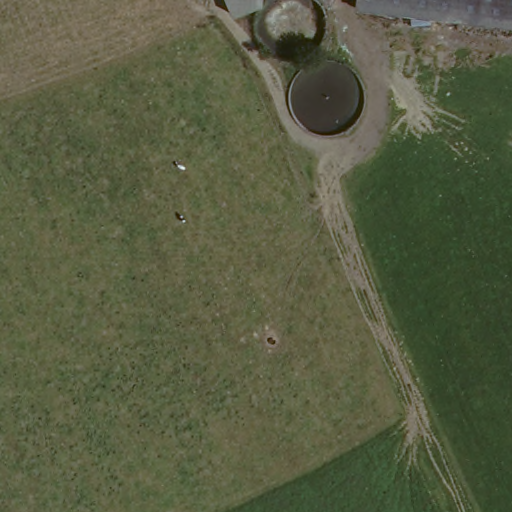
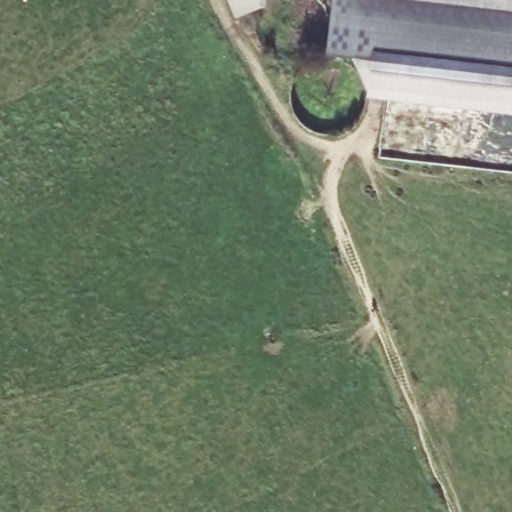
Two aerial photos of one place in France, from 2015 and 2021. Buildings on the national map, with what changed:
unchanged [(259,5),(236,15),(230,0),(259,0),(259,5)]
new [(367,94),(367,87),(354,54),(327,49),(334,0),(512,0),(512,110),(367,94)]

